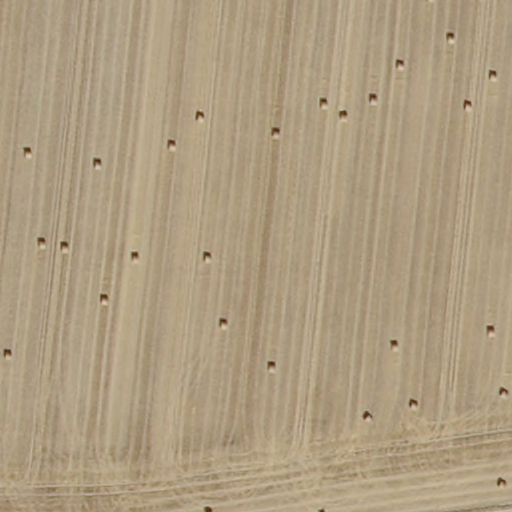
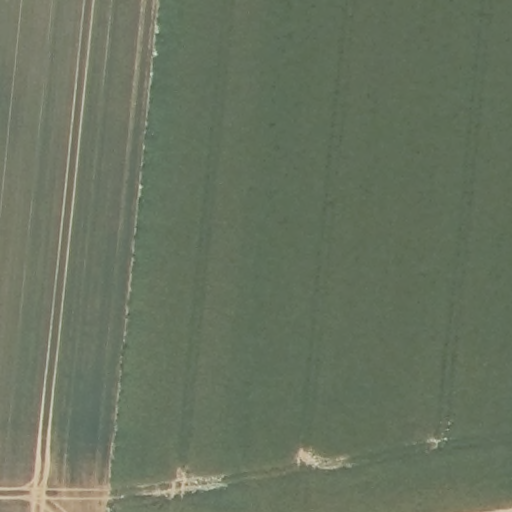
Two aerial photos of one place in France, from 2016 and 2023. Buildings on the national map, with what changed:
[]

